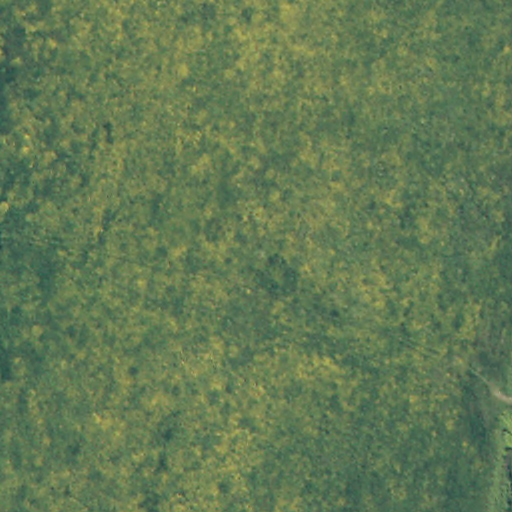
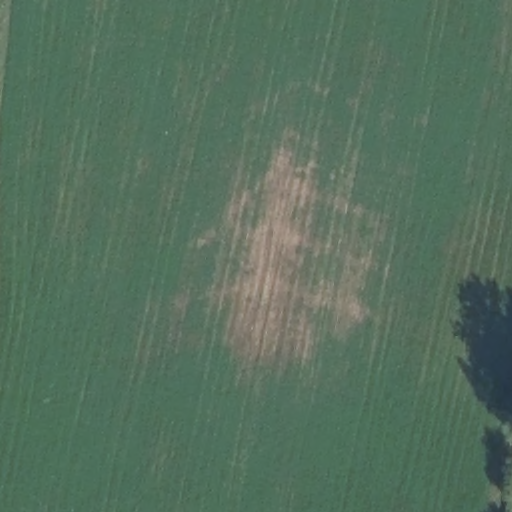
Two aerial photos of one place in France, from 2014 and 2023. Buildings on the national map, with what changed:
[]

